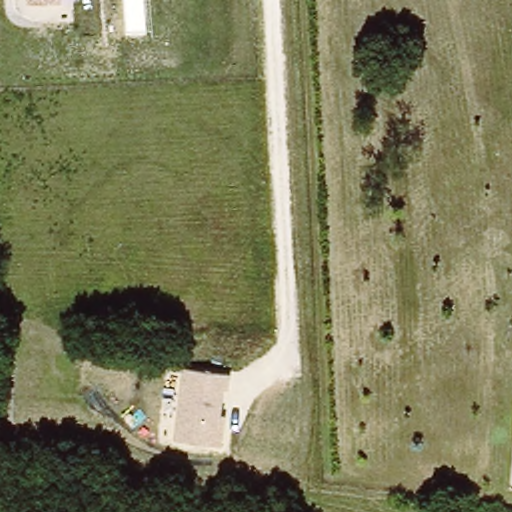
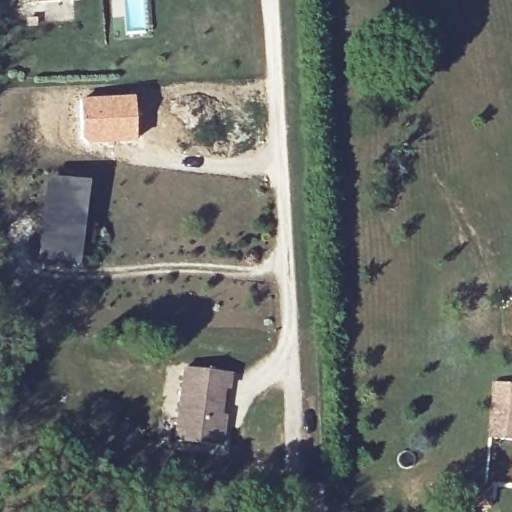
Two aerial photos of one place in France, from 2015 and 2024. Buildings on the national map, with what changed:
unchanged [(28,3),(28,0),(62,0),(62,1),(28,3)]
new [(133,96),(135,143),(82,144),(80,98),(133,96)]
new [(57,180),(89,184),(80,257),(48,254),(57,180)]
unchanged [(232,373),(230,394),(225,393),(222,416),(226,417),(222,446),(174,440),(182,367),(232,373)]
new [(512,386),(512,441),(488,439),(492,404),(493,384),(512,386)]

